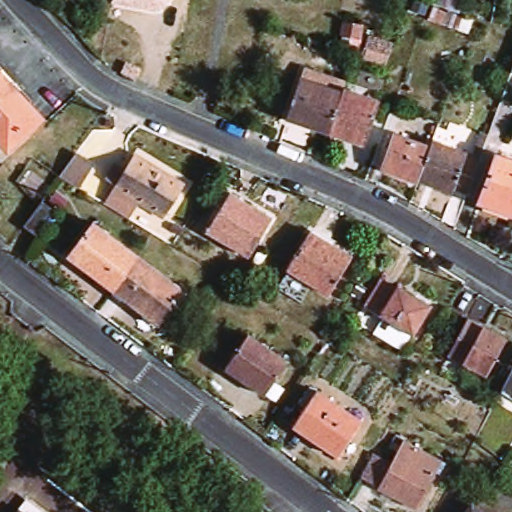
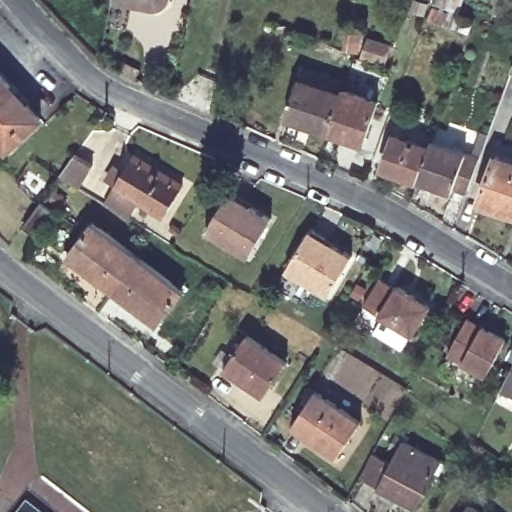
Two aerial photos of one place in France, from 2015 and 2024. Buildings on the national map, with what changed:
unchanged [(122,0),(168,0),(167,2),(164,4),(161,6),(157,6),(153,6),(141,4),(131,2),(122,0)]
unchanged [(434,0),(466,0),(462,14),(475,19),(469,35),(428,21),(434,0)]
unchanged [(370,26),(363,43),(338,36),(344,19),(370,26)]
unchanged [(289,123),(302,83),(303,84),(306,72),(347,86),(343,97),(344,97),(331,137),(289,123)]
unchanged [(39,121),(5,152),(0,146),(0,77),(39,121)]
unchanged [(344,97),(345,94),(381,106),(367,150),(331,137),(344,97)]
unchanged [(385,140),(422,152),(411,185),(376,174),(385,140)]
unchanged [(422,152),(425,146),(472,162),(460,196),(446,192),(444,197),(411,185),(422,152)]
unchanged [(82,187),(63,175),(79,152),(96,163),(82,187)]
unchanged [(109,207),(138,160),(187,189),(167,222),(144,207),(134,222),(109,207)]
unchanged [(512,223),(478,211),(494,162),(512,169),(512,223)]
unchanged [(274,222),(251,260),(210,236),(234,197),(274,222)]
unchanged [(59,210),(42,234),(28,224),(46,200),(59,210)]
unchanged [(141,258),(117,294),(72,260),(98,226),(141,258)]
unchanged [(355,260),(333,301),(292,275),(315,236),(355,260)]
unchanged [(188,294),(162,328),(117,294),(141,258),(188,294)]
unchanged [(400,290),(401,288),(435,308),(417,339),(367,307),(384,281),(400,290)]
unchanged [(511,348),(492,384),(453,362),(472,327),(511,348)]
unchanged [(287,364),(264,399),(225,373),(248,338),(287,364)]
unchanged [(512,381),(512,399),(505,395),(512,381)]
unchanged [(365,423),(340,460),(296,429),(320,395),(365,423)]
unchanged [(386,462),(401,470),(412,447),(441,462),(448,465),(443,476),(424,512),(423,512),(374,487),(386,462)]

